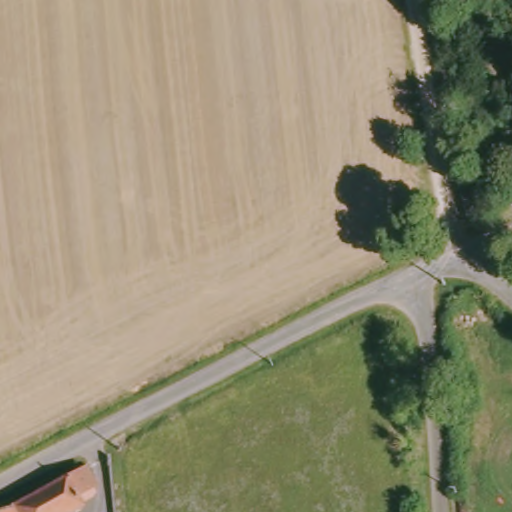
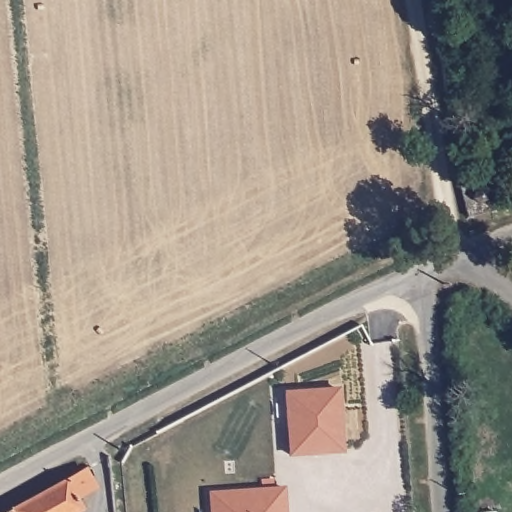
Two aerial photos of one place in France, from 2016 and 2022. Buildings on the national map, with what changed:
unchanged [(487,176),(495,211),(466,217),(457,183),(487,176)]
new [(284,392),(337,389),(342,453),(288,457),(284,392)]
unchanged [(70,488),(77,501),(57,512),(0,512),(0,504),(80,459),(90,477),(70,488)]
new [(286,512),(210,512),(208,492),(285,488),(286,512)]

